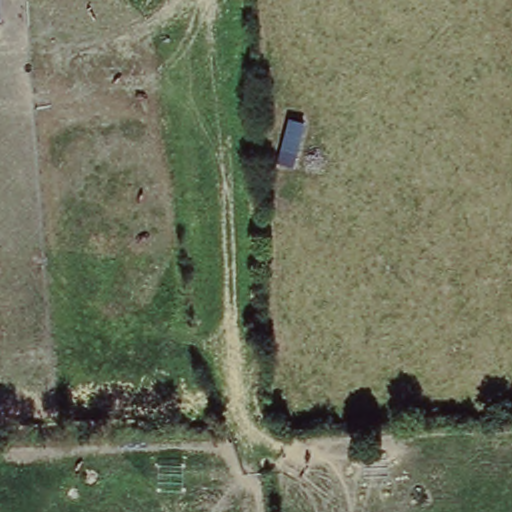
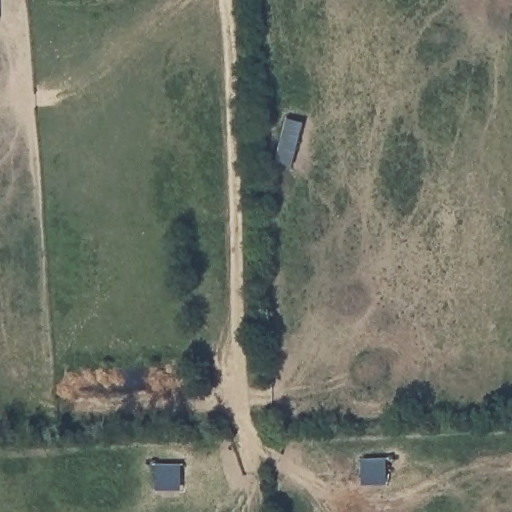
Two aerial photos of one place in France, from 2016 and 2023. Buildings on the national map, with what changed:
unchanged [(285,122),(302,128),(293,169),(273,164),(285,122)]

